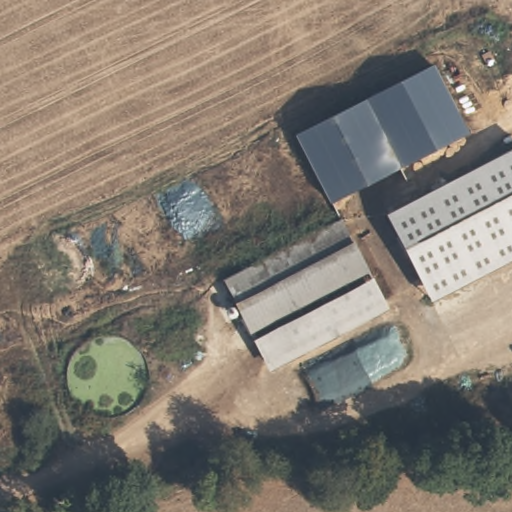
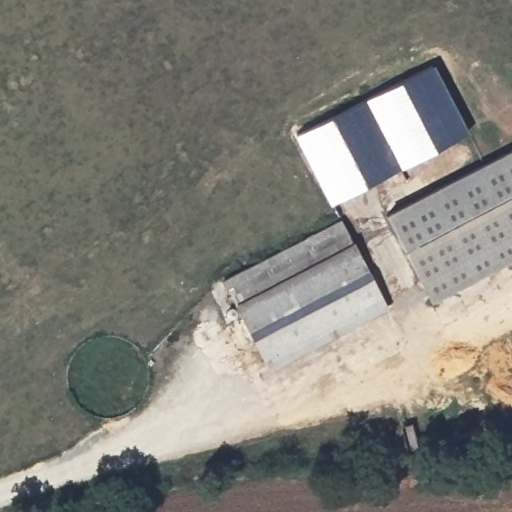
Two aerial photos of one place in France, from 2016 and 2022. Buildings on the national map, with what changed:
unchanged [(328,205),(293,134),(432,66),(466,136),(328,205)]
unchanged [(383,209),(512,146),(512,252),(426,295),(383,209)]
unchanged [(221,278),(341,219),(355,245),(233,302),(221,278)]
unchanged [(372,280),(251,339),(233,302),(355,245),(372,280)]
unchanged [(385,304),(263,365),(251,339),(372,280),(385,304)]

